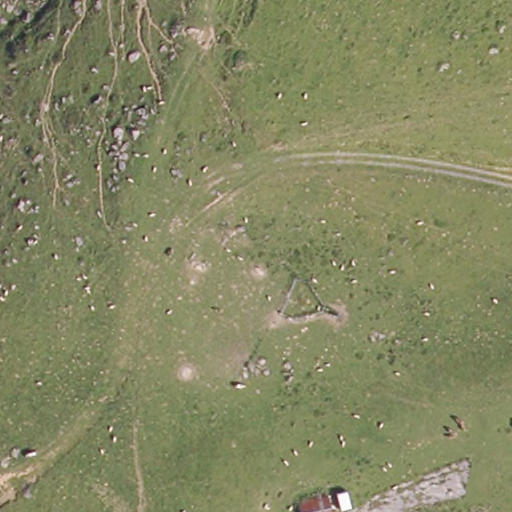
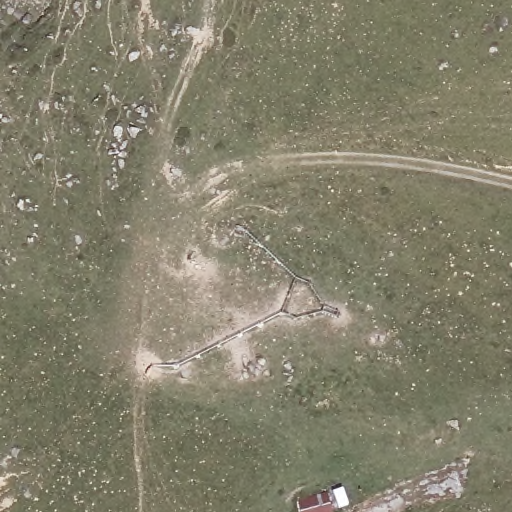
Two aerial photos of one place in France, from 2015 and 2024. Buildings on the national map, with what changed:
unchanged [(322,493),(331,512),(296,512),(294,502),(322,493)]

